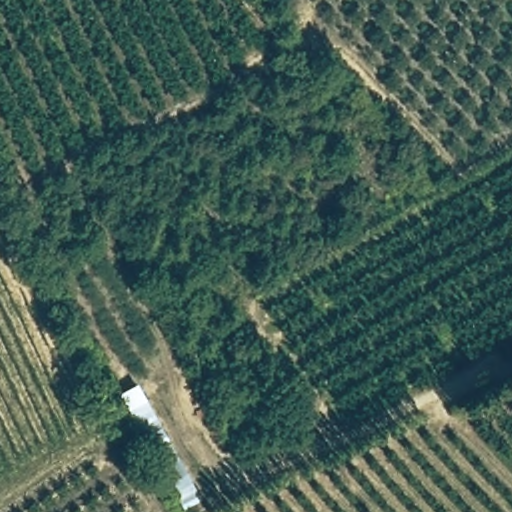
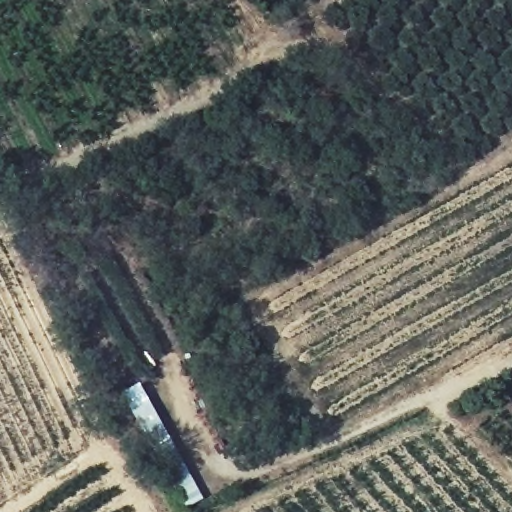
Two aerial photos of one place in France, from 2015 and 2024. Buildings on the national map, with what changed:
unchanged [(139,385),(202,500),(187,509),(123,397),(139,385)]

